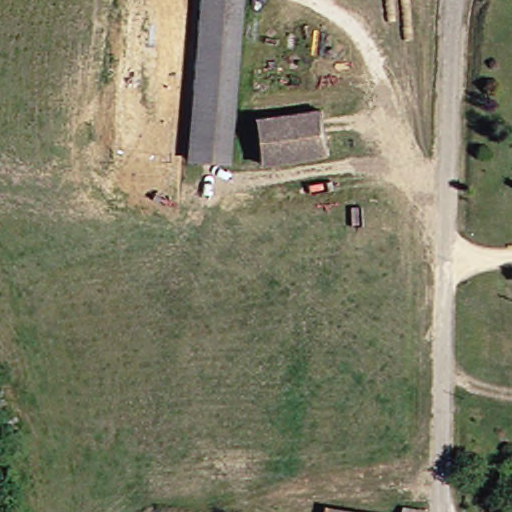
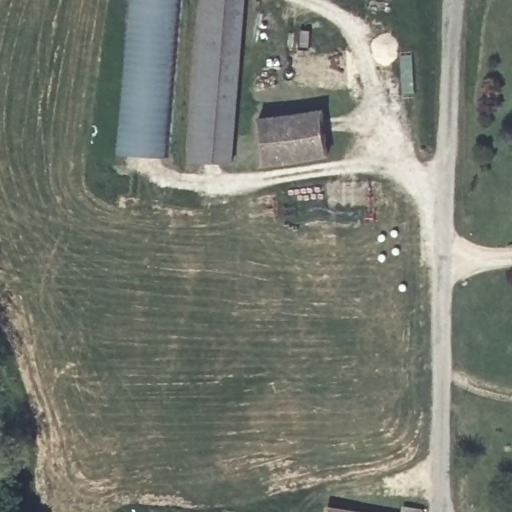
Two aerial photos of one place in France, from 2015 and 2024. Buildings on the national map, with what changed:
new [(131,0),(184,0),(169,158),(117,153),(131,0)]
unchanged [(208,0),(250,0),(237,164),(197,162),(208,0)]
unchanged [(327,114),(332,159),(265,166),(262,121),(327,114)]

